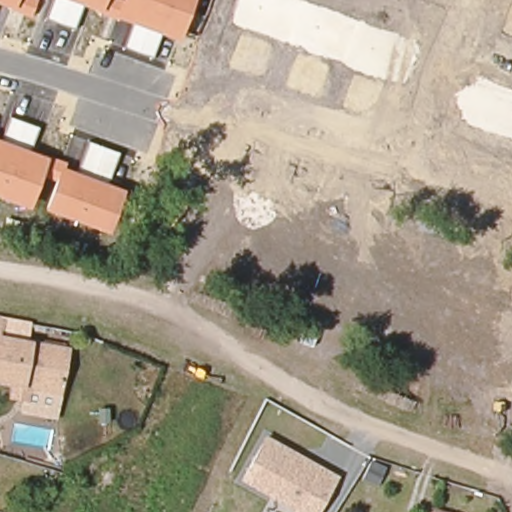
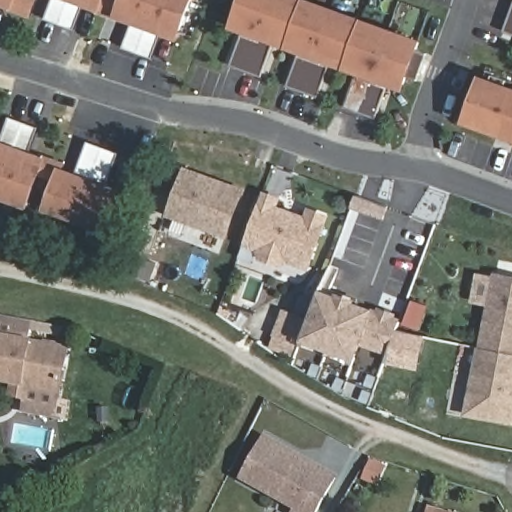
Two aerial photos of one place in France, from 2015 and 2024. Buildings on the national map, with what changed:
unchanged [(8,10),(8,6),(0,4),(0,0),(37,0),(31,17),(8,10)]
unchanged [(160,35),(154,56),(124,45),(131,23),(82,6),(75,28),(47,17),(52,0),(195,0),(180,41),(160,35)]
new [(404,90),(387,85),(357,74),(330,64),(300,52),(273,43),(242,32),(230,27),(239,0),(313,0),(423,40),(404,90)]
new [(512,6),(512,36),(502,32),(512,6)]
new [(230,65),(242,32),(273,43),(261,76),(230,65)]
new [(287,86),(300,52),(330,64),(317,97),(287,86)]
new [(357,74),(387,85),(375,118),(345,107),(357,74)]
new [(512,142),(462,124),(480,74),(512,86),(512,142)]
unchanged [(109,234),(45,212),(56,181),(42,176),(30,210),(0,198),(0,139),(1,140),(9,116),(39,126),(29,151),(47,157),(46,154),(67,161),(64,167),(76,172),(89,141),(120,152),(107,184),(125,190),(109,234)]
new [(166,215),(184,165),(245,189),(227,239),(166,215)]
new [(242,245),(263,190),(281,196),(278,206),(305,215),(308,206),(330,215),(309,270),(288,262),(280,267),(261,260),(257,251),(242,245)]
new [(470,303),(475,272),(492,275),(493,272),(512,276),(512,353),(479,346),(486,306),(470,303)]
new [(362,342),(355,360),(302,340),(320,288),(338,295),(339,292),(358,299),(357,302),(372,307),(377,309),(377,306),(396,313),(396,316),(400,317),(388,353),(362,342)]
unchanged [(65,357),(58,393),(28,388),(26,399),(10,396),(12,385),(0,383),(0,346),(65,357)]
new [(476,346),(479,346),(512,353),(512,424),(464,415),(476,346)]
unchanged [(318,512),(292,512),(295,507),(240,480),(265,435),(339,475),(318,512)]
unchanged [(437,512),(428,512),(429,510),(437,512)]

